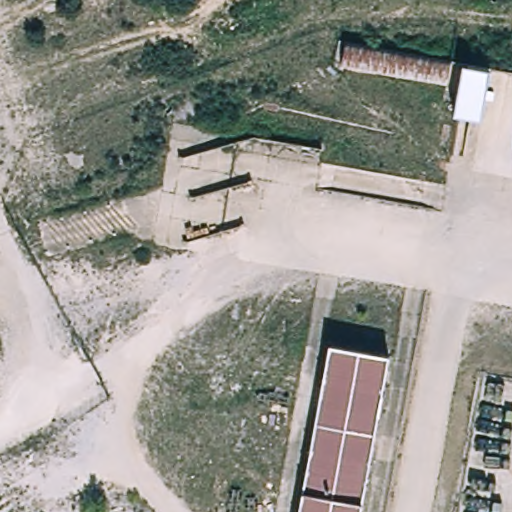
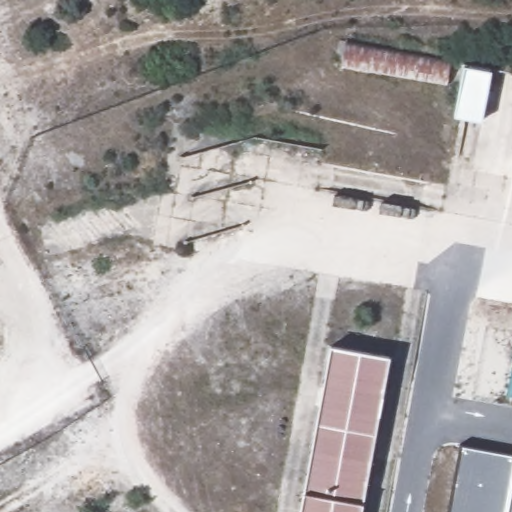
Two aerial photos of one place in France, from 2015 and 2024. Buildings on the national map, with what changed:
unchanged [(450,64),(446,80),(348,66),(350,48),(450,64)]
unchanged [(491,125),(454,118),(464,66),(500,73),(491,125)]
unchanged [(359,512),(303,512),(331,351),(389,358),(359,512)]
new [(461,446),(512,455),(512,512),(449,512),(461,446)]

